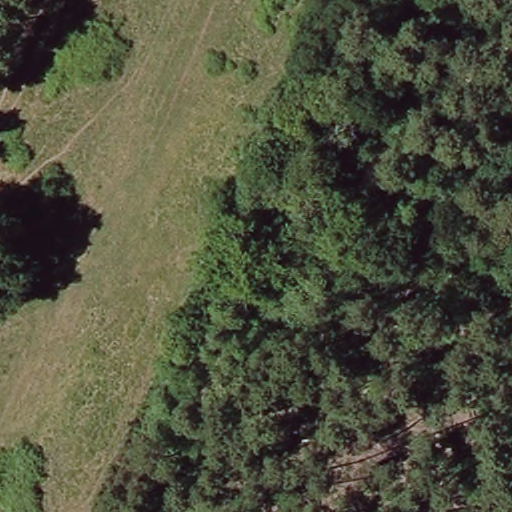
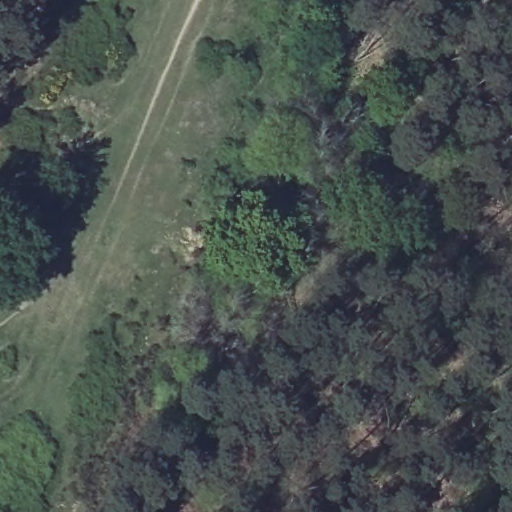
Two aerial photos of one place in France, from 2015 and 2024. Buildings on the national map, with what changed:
[]

